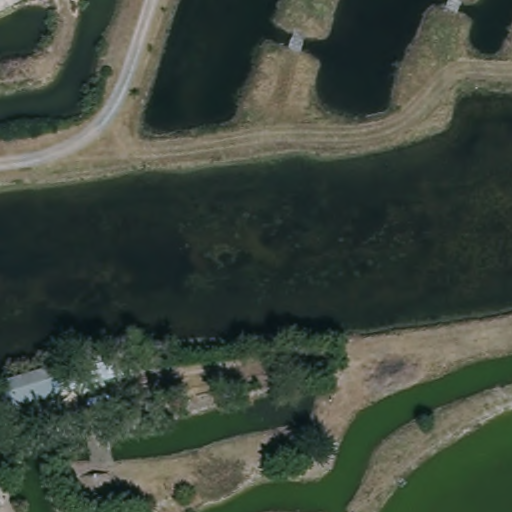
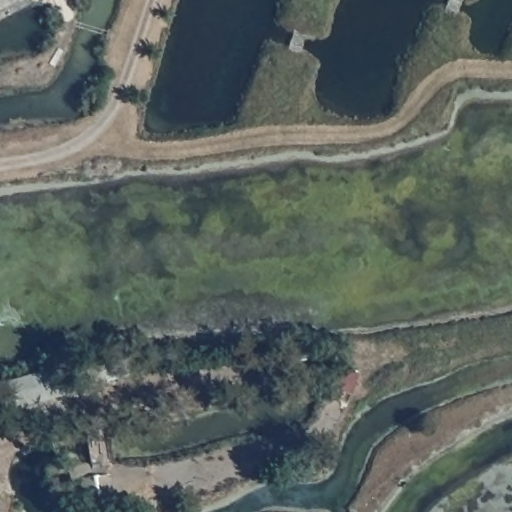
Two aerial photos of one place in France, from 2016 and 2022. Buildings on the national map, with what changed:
unchanged [(16,377),(70,365),(79,396),(21,407),(16,377)]

